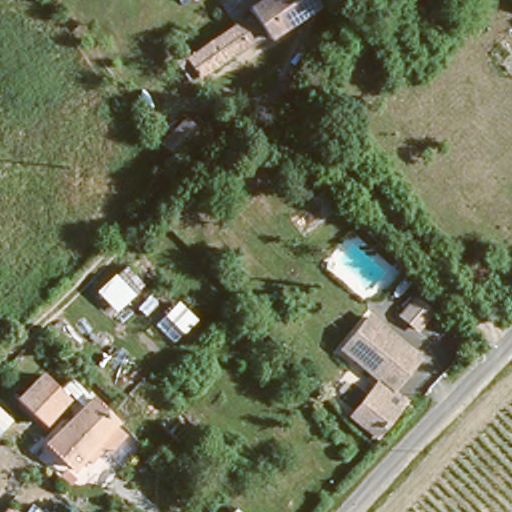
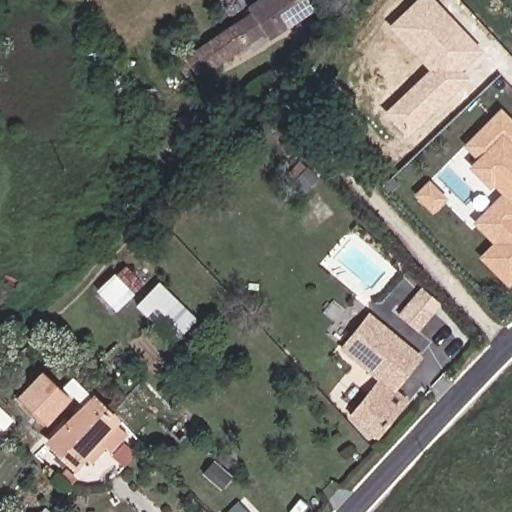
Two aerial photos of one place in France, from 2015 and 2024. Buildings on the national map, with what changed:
unchanged [(248,42),(230,18),(250,4),(249,0),(287,0),(296,12),(269,34),(265,29),(248,42)]
new [(415,0),(434,0),(483,52),(461,72),(468,79),(407,137),(384,113),(427,71),(387,26),(415,0)]
unchanged [(200,77),(182,52),(230,18),(248,42),(200,77)]
new [(512,121),(512,283),(508,288),(478,258),(492,243),(472,223),(500,194),(492,187),(490,190),(467,168),(476,159),(463,146),(500,109),(512,121)]
unchanged [(438,310),(421,333),(397,315),(415,293),(438,310)]
unchanged [(422,355),(395,389),(409,400),(379,438),(350,417),(378,382),(340,352),(370,314),(422,355)]
unchanged [(12,395),(37,367),(60,389),(35,417),(12,395)]
unchanged [(93,464),(77,453),(68,463),(45,443),(89,393),(111,416),(125,429),(93,464)]
unchanged [(11,512),(8,512),(9,511),(11,512)]

